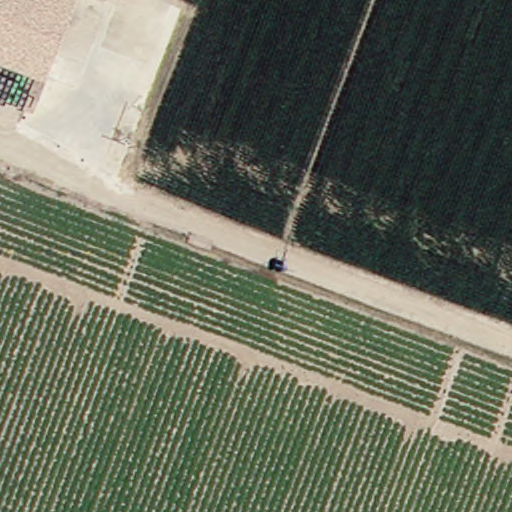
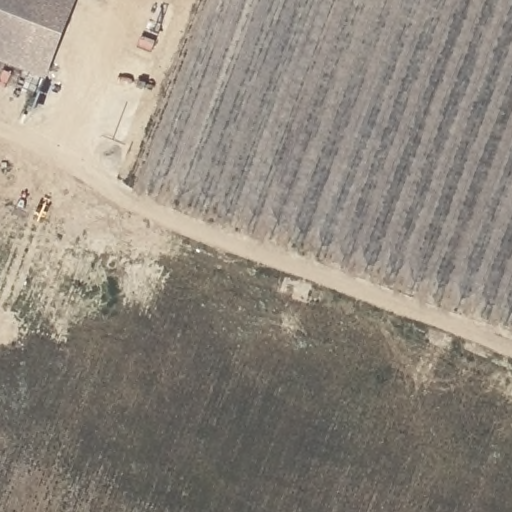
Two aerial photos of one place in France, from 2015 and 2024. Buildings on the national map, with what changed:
unchanged [(21,72),(0,64),(0,0),(20,0),(4,42),(29,51),(22,68),(21,72)]
unchanged [(50,78),(22,68),(29,51),(4,42),(20,0),(77,0),(50,78)]

